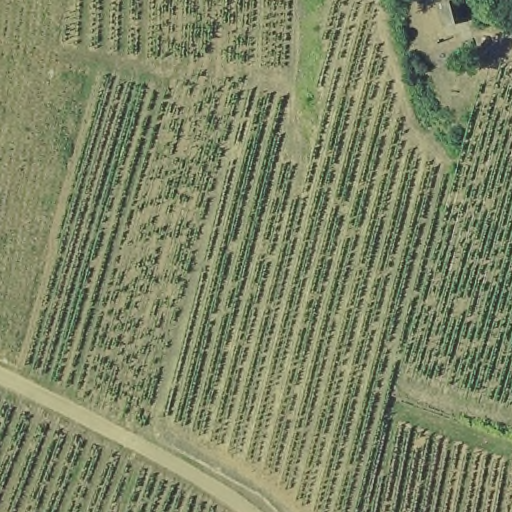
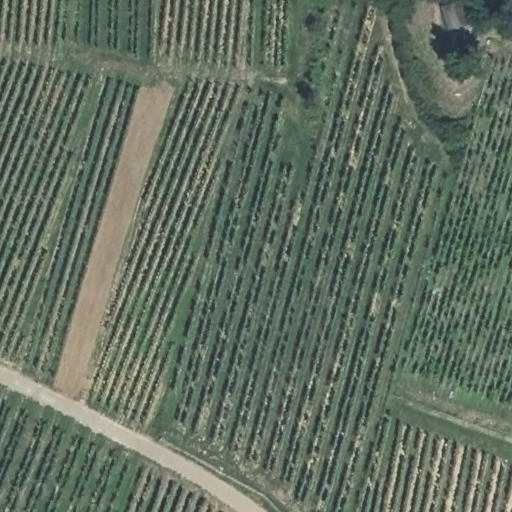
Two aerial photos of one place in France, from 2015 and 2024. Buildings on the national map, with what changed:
unchanged [(455,0),(467,0),(477,25),(451,35),(442,4),(455,0)]

